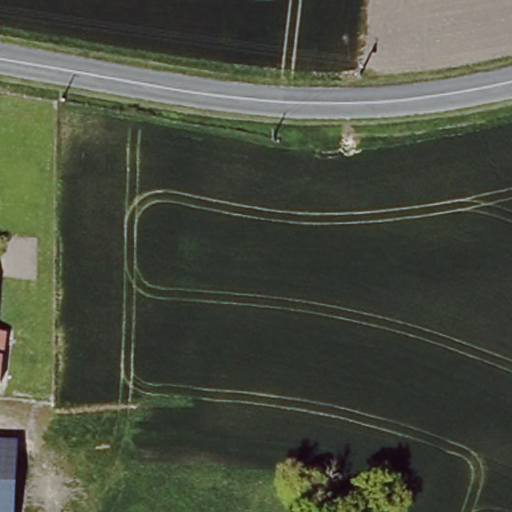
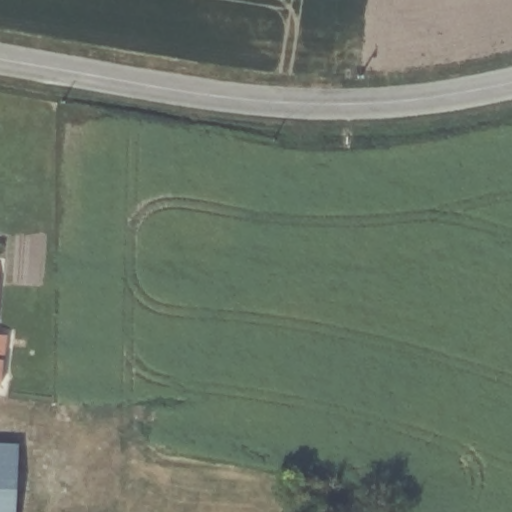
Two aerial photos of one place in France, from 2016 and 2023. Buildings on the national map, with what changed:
unchanged [(17,441),(16,462),(15,512),(0,512),(0,440),(17,441)]

